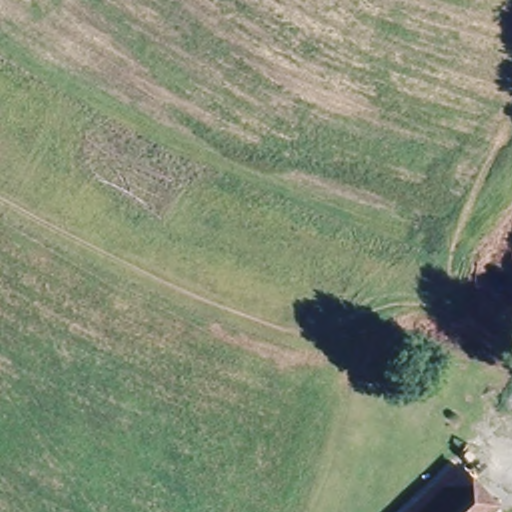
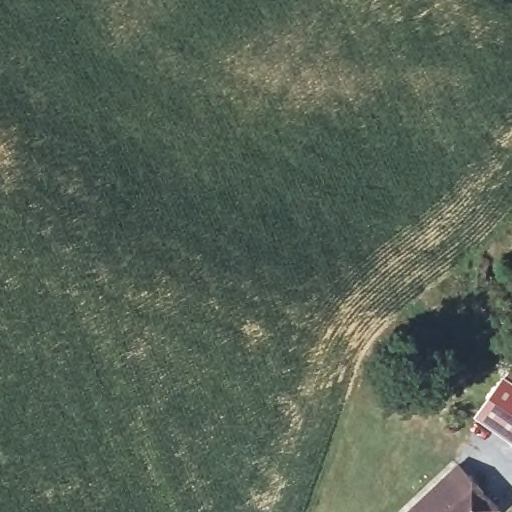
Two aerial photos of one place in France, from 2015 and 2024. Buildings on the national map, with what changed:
new [(512,379),(512,442),(474,415),(505,375),(512,379)]
unchanged [(453,470),(492,512),(411,512),(453,470)]

